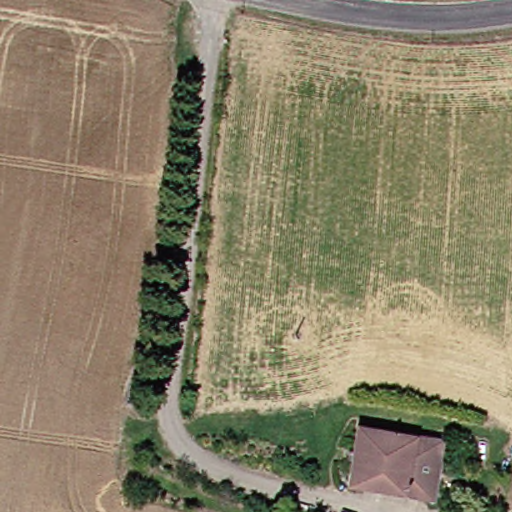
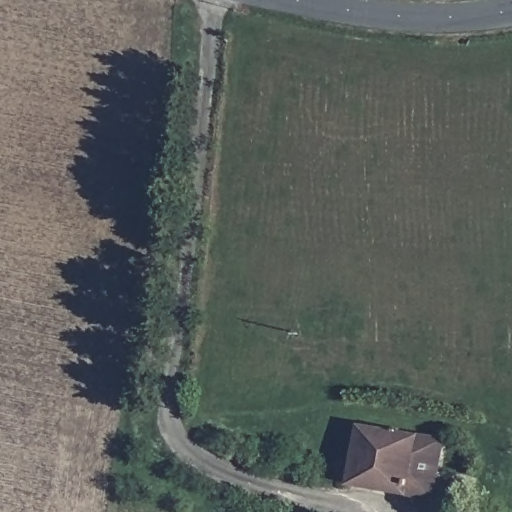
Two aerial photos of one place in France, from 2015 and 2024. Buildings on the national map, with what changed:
unchanged [(444,500),(363,485),(374,424),(455,438),(444,500)]

